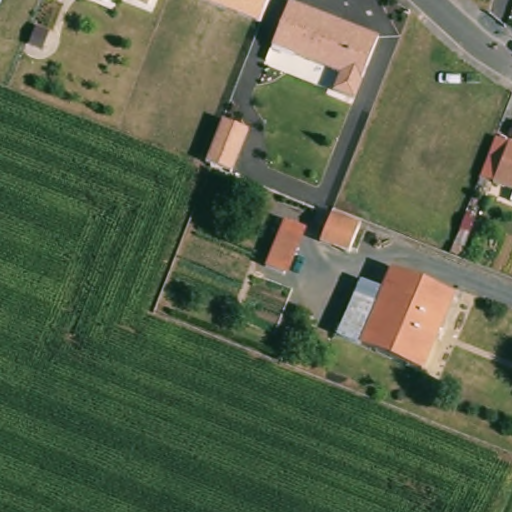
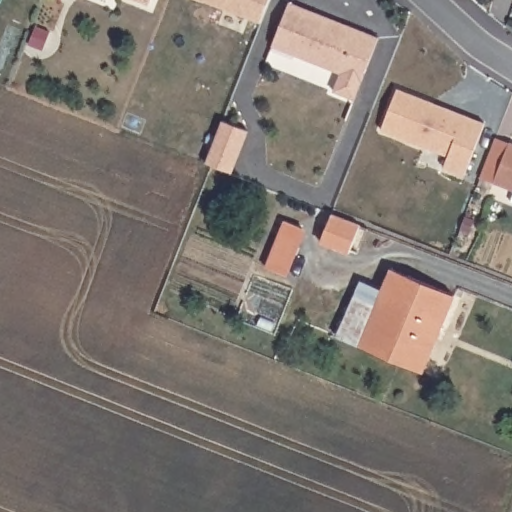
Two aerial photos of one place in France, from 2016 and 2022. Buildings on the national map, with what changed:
unchanged [(134,0),(149,0),(147,5),(134,0)]
unchanged [(269,0),(259,25),(197,0),(269,0)]
unchanged [(360,110),(340,102),(347,84),(302,64),(279,55),(286,40),(298,11),(387,49),(360,110)]
new [(443,168),(448,156),(382,130),(397,89),(485,124),(465,177),(443,168)]
unchanged [(250,131),(232,180),(204,169),(222,119),(250,131)]
unchanged [(512,179),(512,195),(506,193),(512,179)]
unchanged [(334,219),(357,228),(346,257),(318,246),(329,217),(334,219)]
unchanged [(288,229),(301,234),(286,276),(271,269),(288,229)]
unchanged [(377,309),(391,274),(454,299),(423,375),(360,351),(377,309)]
unchanged [(337,292),(377,309),(360,351),(319,334),(330,308),(337,292)]

